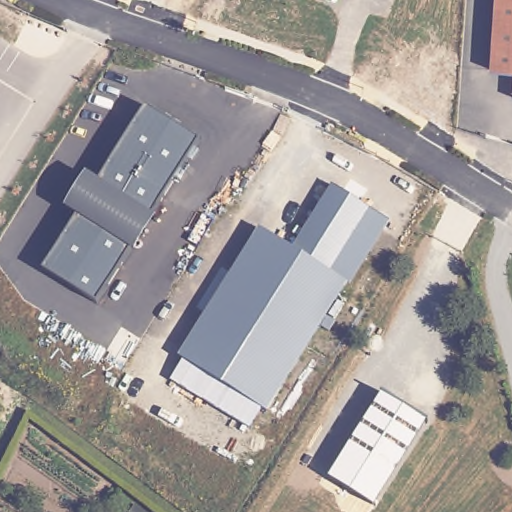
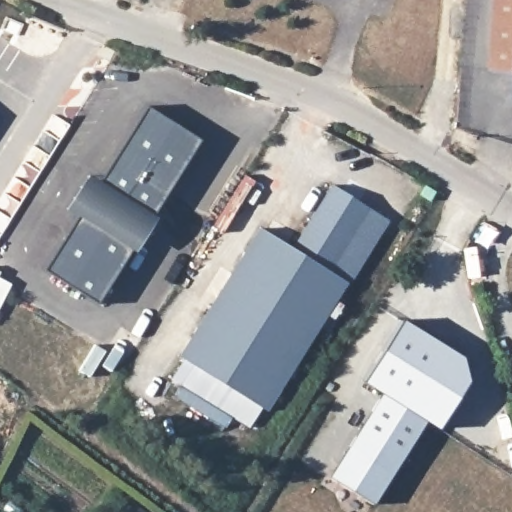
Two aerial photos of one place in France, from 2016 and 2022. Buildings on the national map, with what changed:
unchanged [(501,0),(512,0),(512,73),(496,72),(501,0)]
unchanged [(153,211),(157,214),(135,253),(129,250),(97,303),(42,268),(76,217),(62,208),(87,169),(102,178),(147,106),(199,139),(153,211)]
unchanged [(348,284),(268,412),(261,407),(247,426),(173,381),(186,360),(179,356),(258,226),(292,248),(330,184),(389,219),(348,284)]
new [(402,319),(463,357),(470,381),(440,429),(427,421),(381,393),(363,382),(402,319)]
unchanged [(374,506),(327,477),(381,393),(427,421),(374,506)]

